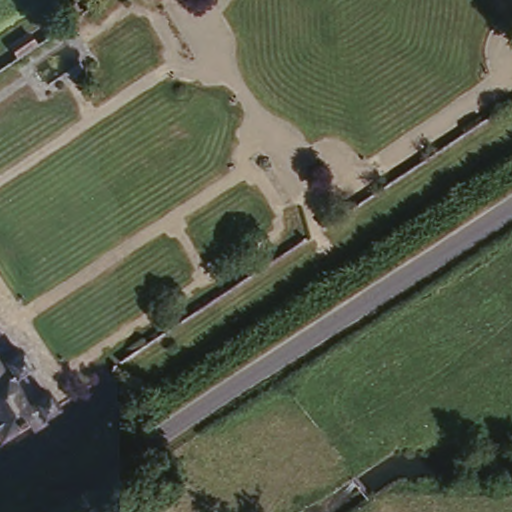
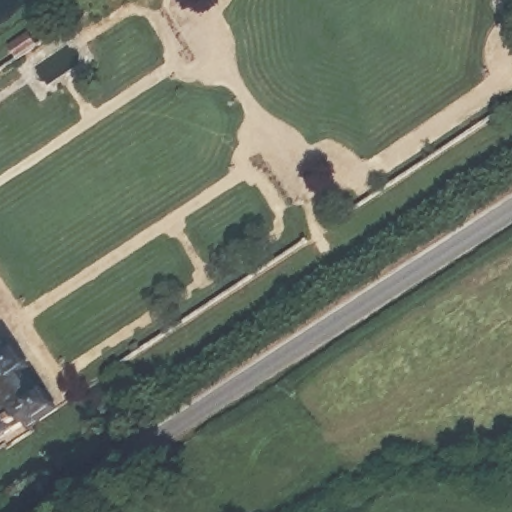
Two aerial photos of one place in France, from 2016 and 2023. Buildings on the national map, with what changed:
unchanged [(58,0),(64,0),(69,8),(60,15),(53,4),(58,0)]
unchanged [(25,37),(32,49),(19,58),(10,45),(25,37)]
unchanged [(15,381),(23,375),(35,390),(26,395),(34,408),(45,402),(51,412),(0,447),(0,358),(15,381)]

